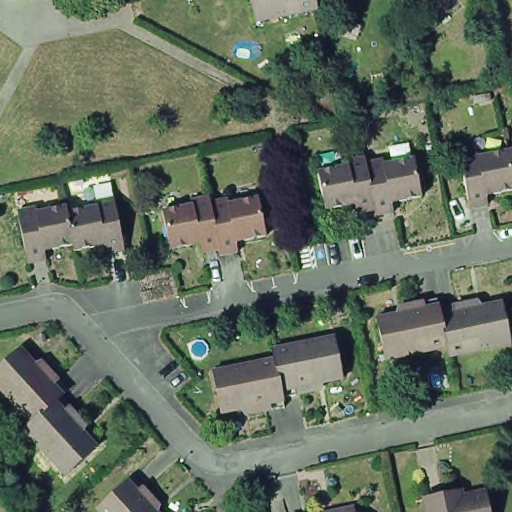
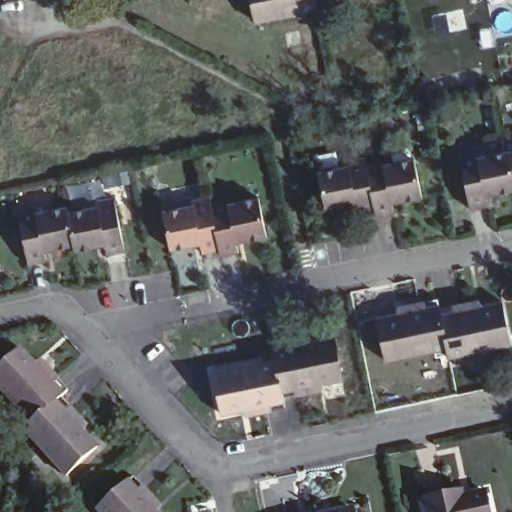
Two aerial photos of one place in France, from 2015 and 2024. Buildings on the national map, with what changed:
unchanged [(252,0),(316,0),(318,6),(256,18),(252,0)]
unchanged [(478,154),(479,158),(512,152),(512,193),(486,198),(488,207),(469,211),(459,157),(478,154)]
unchanged [(369,207),(353,210),(351,201),(321,208),(313,168),(342,163),(341,158),(359,154),(361,160),(378,157),(379,161),(409,155),(417,193),(387,200),(389,209),(371,213),(369,207)]
unchanged [(174,213),(203,208),(201,202),(221,198),(221,194),(238,191),(238,196),(267,190),(276,233),(246,239),(248,249),(231,252),(229,247),(213,250),(211,241),(181,247),(174,213)]
unchanged [(18,210),(37,206),(38,211),(67,205),(68,210),(98,204),(96,199),(114,195),(126,248),(108,251),(105,242),(75,248),(74,244),(46,250),(48,259),(29,263),(18,210)]
unchanged [(432,316),(492,303),(501,343),(441,357),(439,348),(376,362),(367,320),(429,306),(432,316)]
unchanged [(209,373),(271,359),(269,351),(327,337),(334,379),(278,392),(279,400),(218,413),(209,373)]
unchanged [(38,419),(0,378),(0,371),(26,345),(68,391),(61,397),(103,444),(71,471),(30,426),(38,419)]
unchanged [(161,512),(105,512),(99,506),(129,477),(161,512)]
unchanged [(451,491),(453,497),(479,491),(483,509),(479,510),(480,512),(421,512),(418,498),(451,491)]
unchanged [(346,512),(316,512),(344,506),(346,512)]

